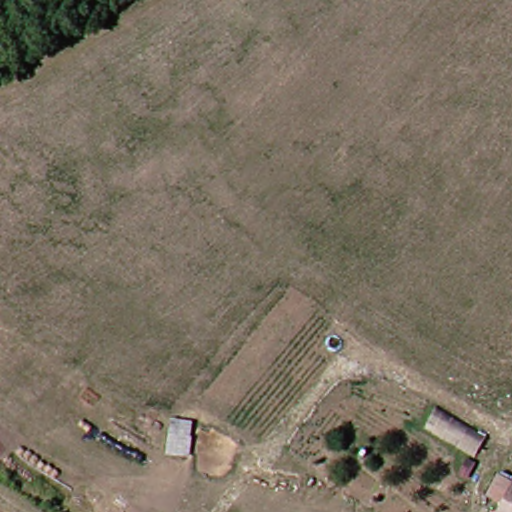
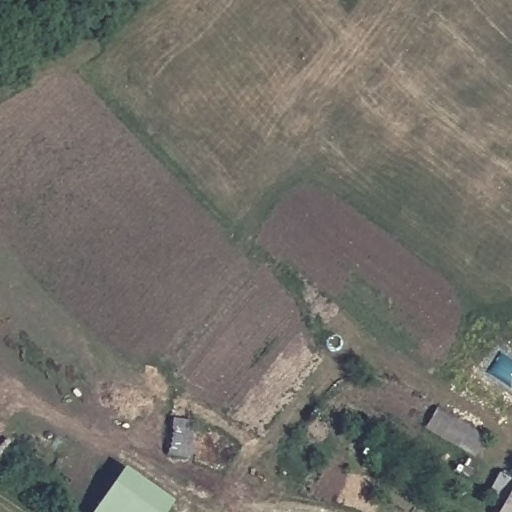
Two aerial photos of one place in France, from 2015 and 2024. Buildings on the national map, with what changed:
new [(165,454),(172,419),(189,422),(187,430),(195,431),(190,459),(165,454)]
new [(123,469),(173,503),(167,512),(93,512),(123,469)]
unchanged [(489,492),(501,472),(512,478),(512,512),(498,512),(504,500),(489,492)]

